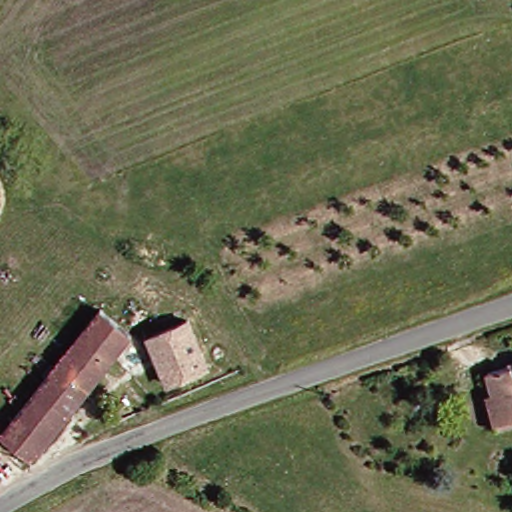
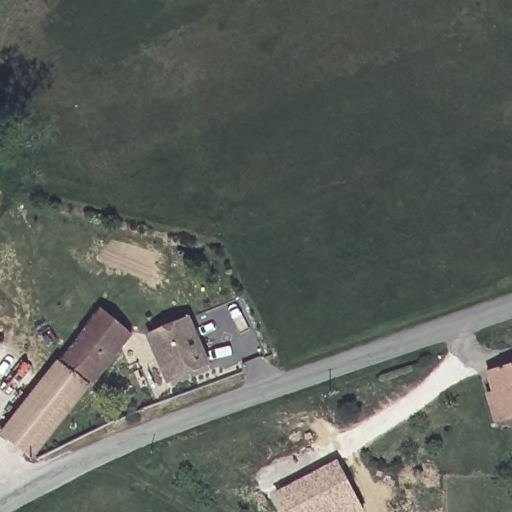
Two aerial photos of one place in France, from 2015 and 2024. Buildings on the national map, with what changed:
unchanged [(35,458),(5,437),(69,360),(103,310),(116,318),(134,329),(126,339),(35,458)]
unchanged [(185,327),(197,354),(205,372),(164,389),(146,344),(185,327)]
unchanged [(495,395),(489,369),(510,364),(512,364),(512,420),(494,424),(487,397),(495,395)]
new [(274,494),(337,461),(364,512),(284,512),(274,494)]

